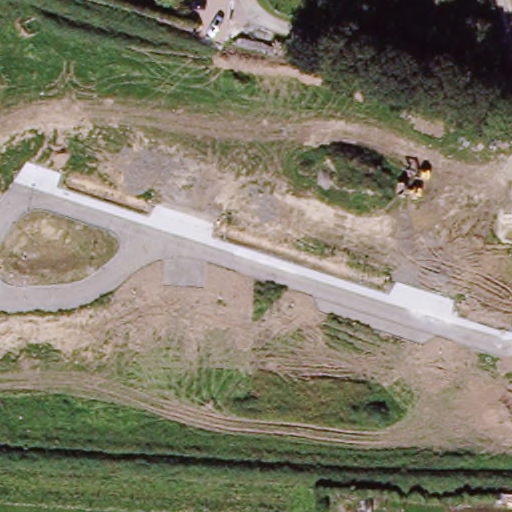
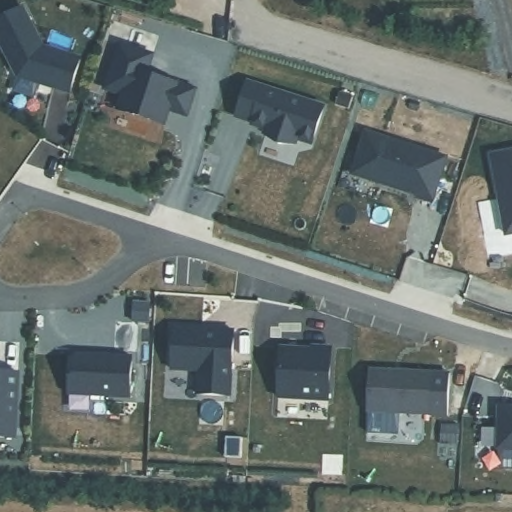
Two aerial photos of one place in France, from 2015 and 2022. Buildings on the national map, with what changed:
new [(46,48),(84,60),(74,96),(21,81),(0,44),(0,23),(23,9),(46,48)]
new [(115,71),(117,72),(121,51),(153,61),(146,81),(197,95),(189,122),(172,116),(167,132),(120,117),(125,102),(106,97),(115,71)]
new [(254,89),(331,112),(318,151),(303,146),(301,152),(284,152),(271,140),(274,136),(258,131),(259,129),(243,124),(254,89)]
new [(372,134),(451,162),(436,206),(419,200),(420,197),(357,176),(372,134)]
new [(512,151),(512,233),(508,234),(492,155),(512,151)]
new [(177,332),(237,335),(235,400),(202,400),(203,375),(174,375),(177,332)]
new [(283,354),(315,355),(315,352),(334,352),(333,405),(283,405),(283,354)]
new [(74,366),(79,361),(135,362),(134,402),(74,402),(74,366)]
new [(373,373),(435,375),(434,417),(372,415),(373,373)]
new [(21,395),(20,407),(19,443),(0,443),(0,378),(21,378),(21,395)]
new [(502,413),(512,413),(512,456),(502,456),(502,413)]

